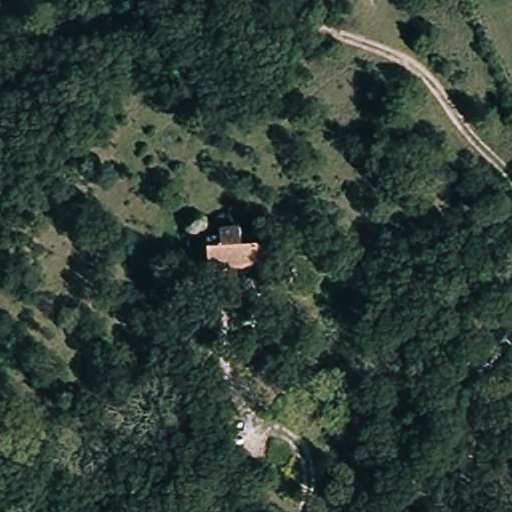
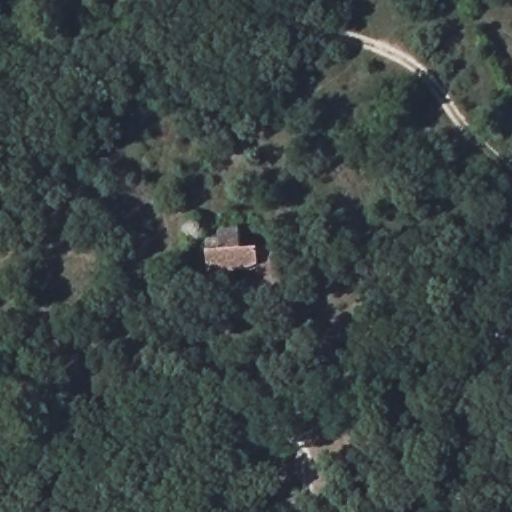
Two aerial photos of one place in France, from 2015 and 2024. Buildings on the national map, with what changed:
unchanged [(236,249),(240,269),(222,272),(218,252),(236,249)]

